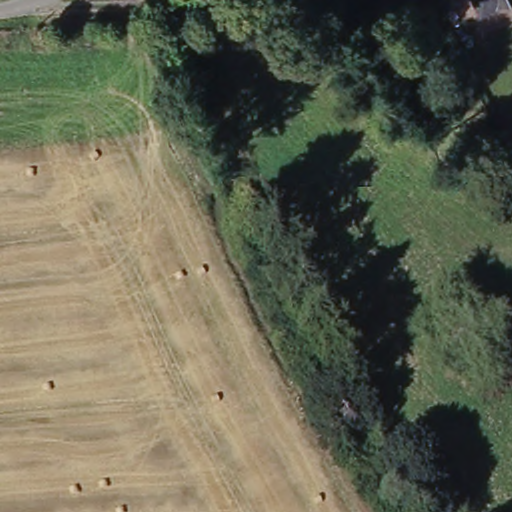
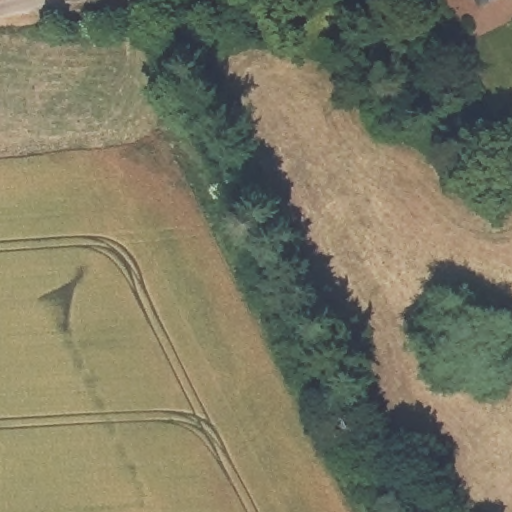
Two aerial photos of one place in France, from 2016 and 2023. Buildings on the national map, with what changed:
unchanged [(477,0),(501,0),(481,9),(477,0)]

